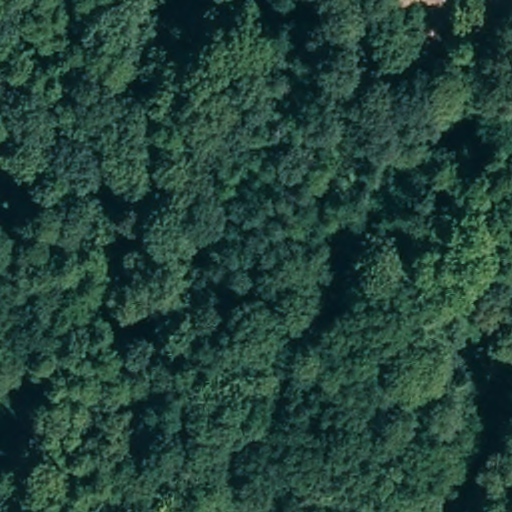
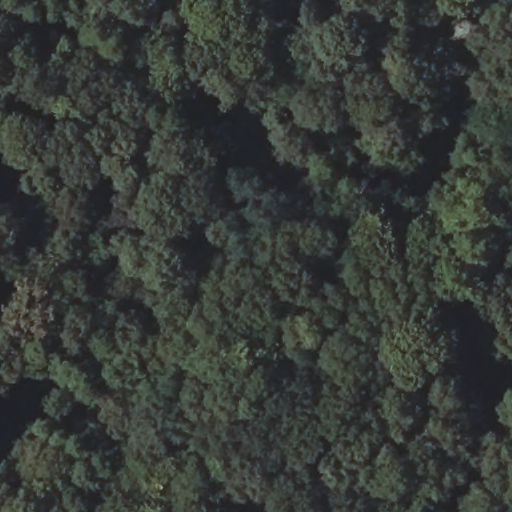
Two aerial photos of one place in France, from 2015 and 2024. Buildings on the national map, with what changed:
[]

